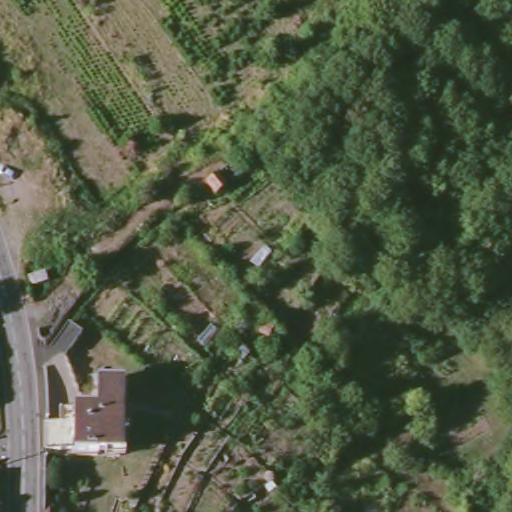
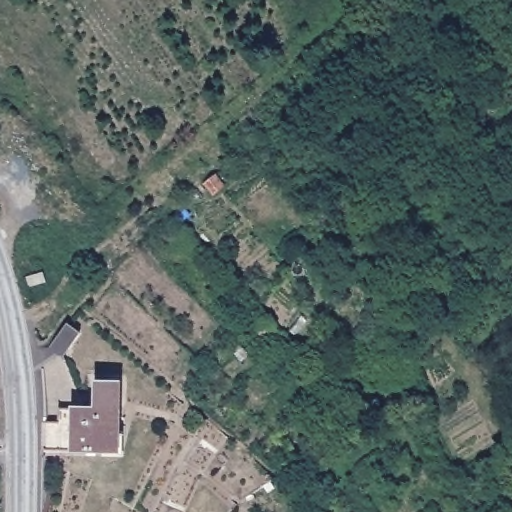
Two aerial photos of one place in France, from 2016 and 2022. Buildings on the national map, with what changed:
unchanged [(40,269),(42,278),(26,283),(24,273),(40,269)]
unchanged [(80,335),(58,357),(48,346),(69,324),(80,335)]
unchanged [(125,447),(45,451),(43,420),(65,419),(65,406),(99,404),(99,381),(124,381),(125,447)]

